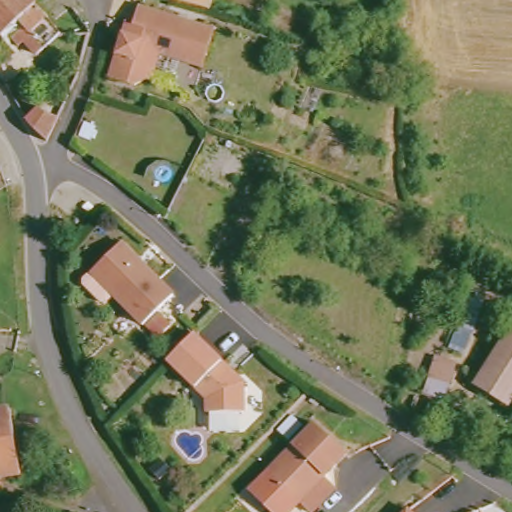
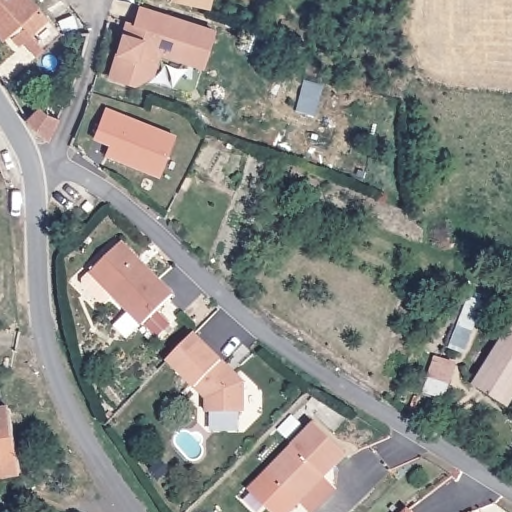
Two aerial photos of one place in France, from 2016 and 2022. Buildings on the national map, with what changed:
unchanged [(32,1),(0,28),(0,0),(30,0),(32,1)]
unchanged [(212,9),(173,0),(214,0),(212,9)]
unchanged [(32,1),(58,31),(35,52),(22,37),(15,44),(5,32),(0,36),(0,35),(0,28),(32,1)]
unchanged [(156,50),(149,72),(133,82),(107,74),(119,32),(127,34),(137,5),(210,28),(199,64),(156,50)]
unchanged [(54,120),(43,142),(30,130),(23,121),(23,120),(37,107),(55,119),(54,120)]
new [(175,135),(158,177),(104,156),(108,146),(92,138),(105,107),(175,135)]
unchanged [(85,210),(90,204),(95,209),(89,215),(85,210)]
unchanged [(175,293),(146,322),(117,292),(107,303),(85,280),(124,240),(175,293)]
unchanged [(512,398),(511,398),(479,377),(512,323),(512,398)]
unchanged [(176,341),(186,331),(218,362),(216,366),(220,368),(224,368),(236,380),(236,408),(199,410),(199,396),(160,357),(176,341)]
unchanged [(7,407),(18,472),(0,475),(0,408),(7,407)]
unchanged [(293,495),(266,468),(313,421),(344,452),(322,475),(297,500),(293,495)]
unchanged [(400,512),(405,507),(411,512),(400,512)]

